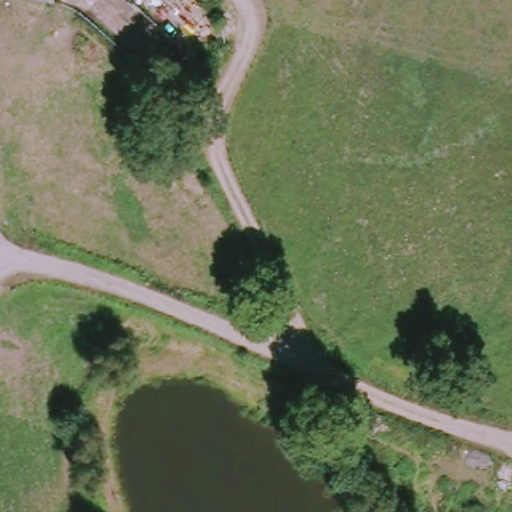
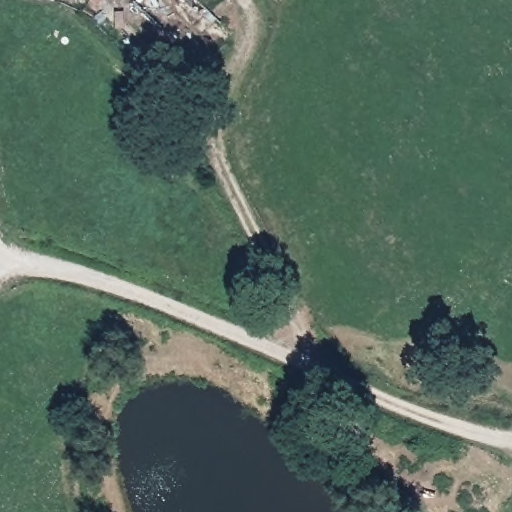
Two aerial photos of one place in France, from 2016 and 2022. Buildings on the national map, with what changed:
[]

